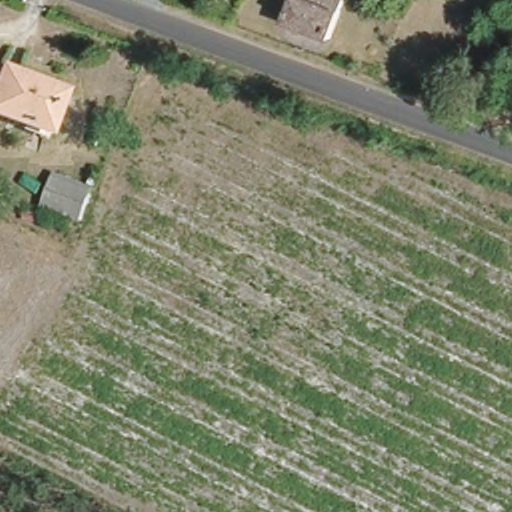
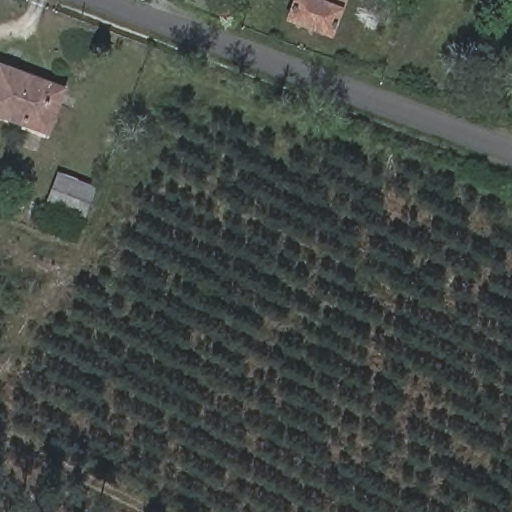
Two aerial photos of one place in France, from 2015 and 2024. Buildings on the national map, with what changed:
unchanged [(341,10),(331,37),(287,20),(293,0),(343,0),(340,10),(341,10)]
unchanged [(0,112),(0,84),(5,72),(63,93),(50,131),(0,112)]
unchanged [(65,171),(97,183),(83,222),(51,212),(65,171)]

